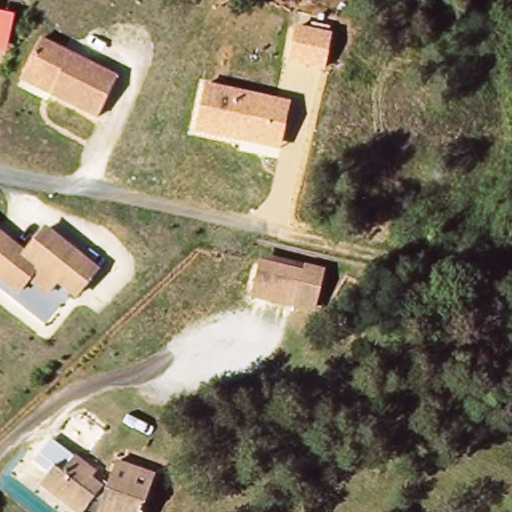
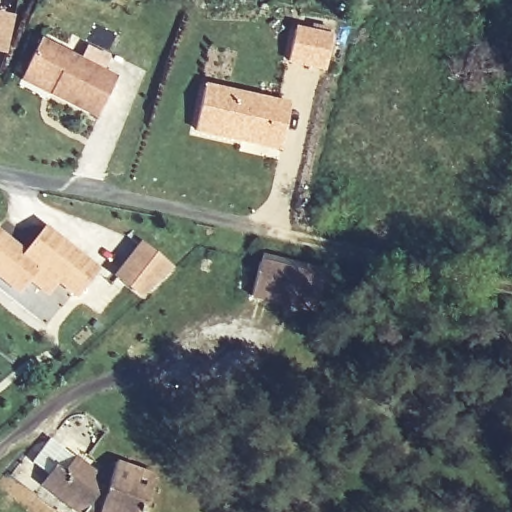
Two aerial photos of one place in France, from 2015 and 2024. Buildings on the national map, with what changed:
unchanged [(311,25),(333,29),(332,34),(325,70),(287,63),(294,26),(310,29),(311,25)]
unchanged [(41,35),(118,75),(99,114),(21,78),(41,35)]
unchanged [(280,150),(193,134),(204,83),(290,102),(280,150)]
unchanged [(100,267),(79,293),(60,278),(50,290),(31,276),(21,288),(0,272),(0,230),(28,252),(48,226),(100,267)]
new [(175,267),(141,298),(113,276),(142,239),(175,267)]
unchanged [(303,295),(300,310),(255,299),(263,265),(306,275),(310,267),(326,271),(324,280),(320,298),(303,295)]
unchanged [(95,466),(92,473),(111,484),(121,464),(162,482),(149,512),(85,512),(39,482),(47,470),(30,459),(46,434),(95,466)]

